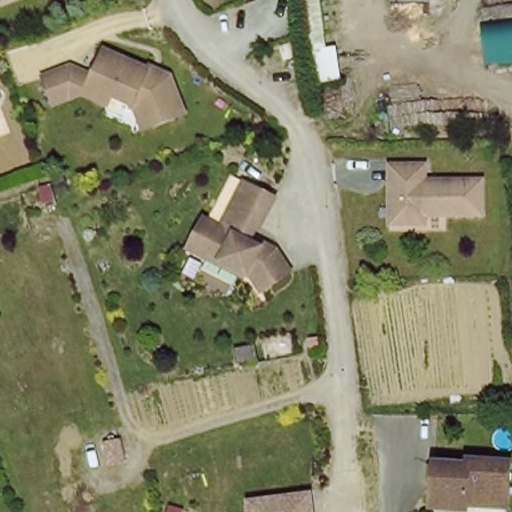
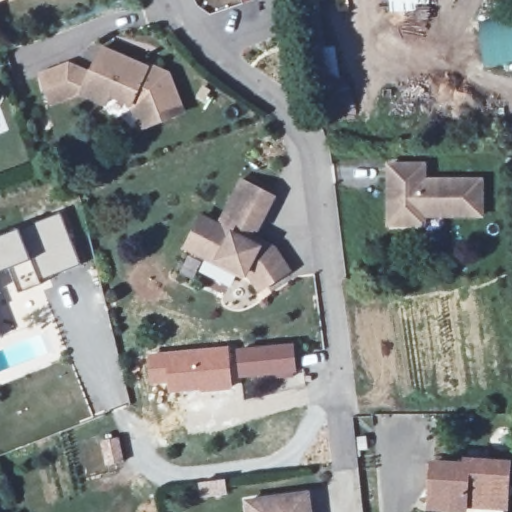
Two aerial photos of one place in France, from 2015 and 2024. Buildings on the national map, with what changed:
unchanged [(3,0),(8,0),(4,1),(3,0)]
unchanged [(343,50),(348,85),(311,90),(299,0),(324,0),(331,50),(343,50)]
new [(416,7),(416,11),(389,13),(388,0),(428,0),(429,6),(416,7)]
unchanged [(512,20),(512,65),(485,68),(482,24),(512,20)]
unchanged [(133,108),(134,105),(113,97),(110,107),(100,103),(83,97),(55,108),(44,80),(60,74),(72,69),(94,77),(98,65),(104,50),(133,62),(150,68),(151,64),(172,72),(175,80),(182,96),(187,110),(178,114),(173,116),(152,125),(141,129),(133,108)]
unchanged [(420,237),(398,240),(390,179),(424,174),(426,189),(483,181),(488,216),(431,224),(432,235),(420,237)]
unchanged [(249,280),(186,250),(203,215),(219,222),(242,178),(279,196),(258,237),(276,247),(294,273),(260,295),(249,280)]
new [(60,215),(80,267),(39,282),(41,285),(16,295),(4,271),(0,273),(0,239),(19,231),(60,215)]
new [(0,337),(0,336),(1,337),(0,337)]
new [(296,344),(299,372),(241,377),(239,350),(296,344)]
new [(230,345),(233,390),(168,394),(166,383),(148,385),(145,353),(230,345)]
new [(119,436),(125,462),(105,467),(99,440),(119,436)]
unchanged [(470,460),(510,461),(510,502),(469,501),(468,512),(444,512),(432,511),(435,465),(470,467),(470,460)]
unchanged [(248,500),(314,492),(316,512),(249,512),(248,500)]

